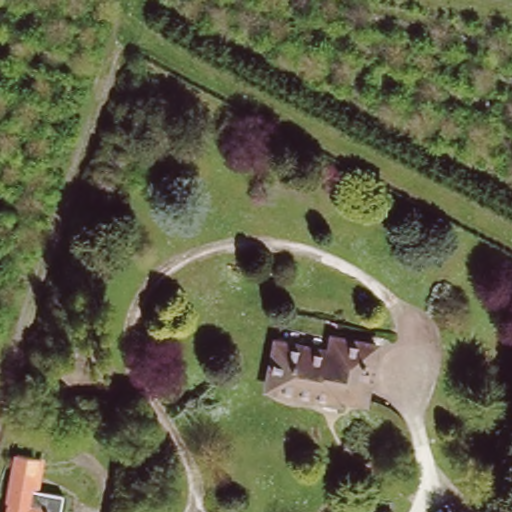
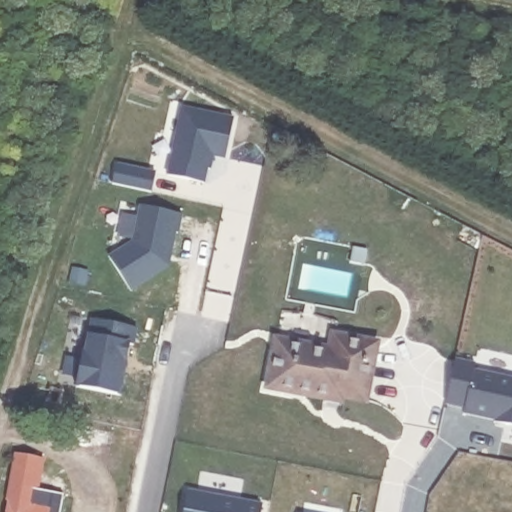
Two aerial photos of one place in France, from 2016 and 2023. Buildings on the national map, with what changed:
new [(182,105),(236,118),(227,160),(215,157),(213,170),(210,169),(208,185),(168,175),(182,105)]
new [(132,241),(139,205),(183,214),(180,235),(177,234),(171,268),(131,292),(108,256),(132,241)]
new [(83,351),(85,351),(88,335),(91,318),(139,327),(136,345),(131,343),(128,362),(125,362),(120,395),(76,388),(83,351)]
unchanged [(386,339),(376,393),(352,390),(349,402),(329,398),(331,390),(275,380),(284,335),(340,345),(343,331),(386,339)]
new [(456,358),(478,363),(476,370),(512,377),(512,427),(497,424),(497,420),(464,415),(464,408),(446,405),(456,358)]
unchanged [(72,512),(11,512),(16,484),(23,448),(48,453),(41,488),(75,495),(72,512)]
new [(188,490),(264,503),(263,512),(184,512),(188,490)]

